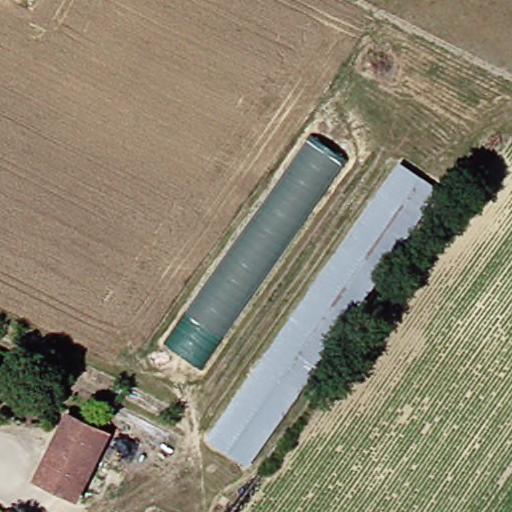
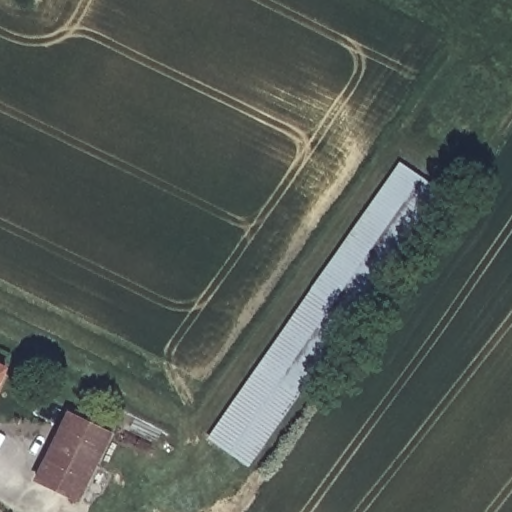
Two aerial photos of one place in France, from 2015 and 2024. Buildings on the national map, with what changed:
demolished [(306,133),(349,160),(199,370),(163,344),(306,133)]
unchanged [(347,317),(312,291),(401,173),(436,199),(347,317)]
unchanged [(236,462),(203,437),(291,319),(326,345),(236,462)]
unchanged [(63,419),(103,438),(74,501),(34,483),(63,419)]

